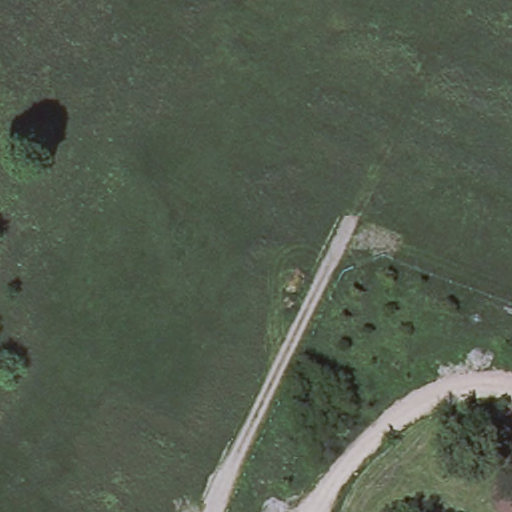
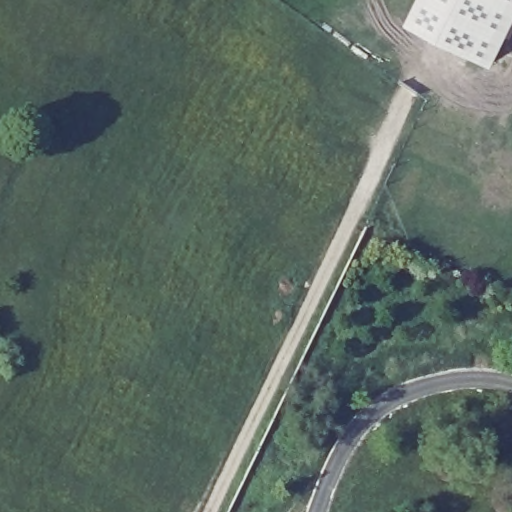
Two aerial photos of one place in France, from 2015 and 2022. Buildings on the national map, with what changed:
new [(408,22),(418,0),(512,0),(512,28),(494,65),(408,22)]

